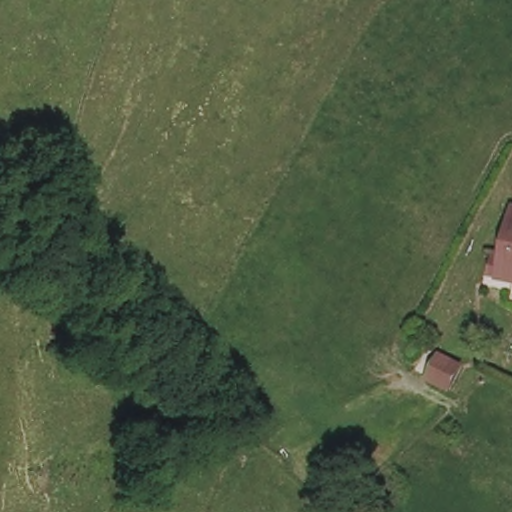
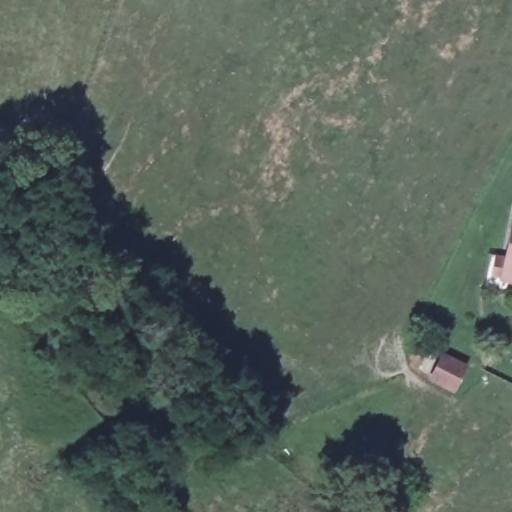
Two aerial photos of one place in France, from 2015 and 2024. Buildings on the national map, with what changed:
unchanged [(504,264),(512,218),(512,266),(504,264)]
unchanged [(449,331),(436,354),(416,342),(430,320),(449,331)]

